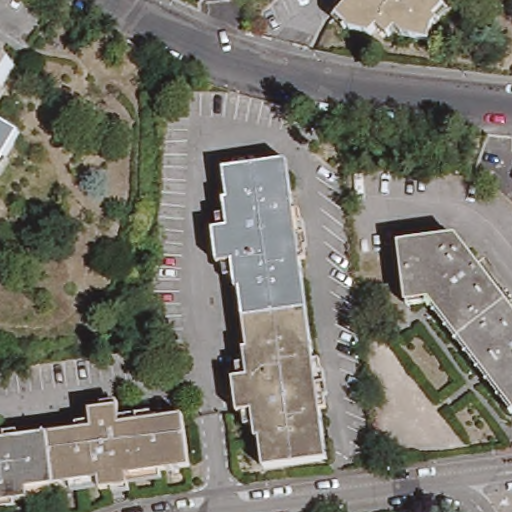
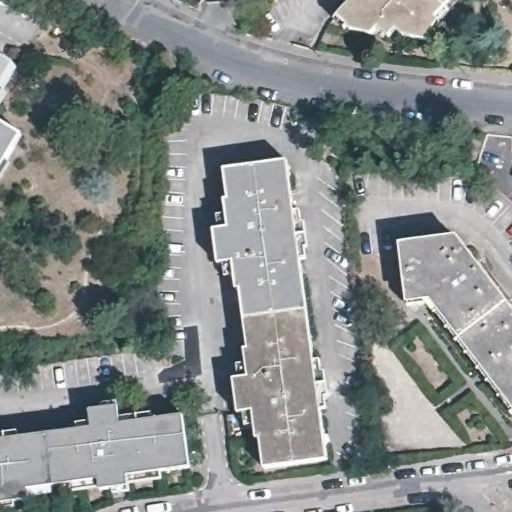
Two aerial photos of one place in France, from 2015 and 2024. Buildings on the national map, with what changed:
unchanged [(409,40),(405,38),(398,30),(393,35),(391,36),(390,36),(380,25),(372,32),(351,27),(338,13),(350,0),(460,0),(441,20),(434,27),(432,43),(409,40)]
unchanged [(26,61),(0,106),(0,46),(26,61)]
unchanged [(145,60),(136,74),(119,61),(129,48),(145,60)]
unchanged [(31,129),(0,180),(0,111),(31,129)]
unchanged [(252,378),(249,349),(252,348),(244,289),(241,290),(237,260),(221,261),(217,227),(224,226),(232,225),(228,197),(232,197),(228,167),(284,160),(289,190),(295,189),(302,237),(303,244),(308,281),(316,343),(321,379),(322,386),(328,431),(318,433),(320,444),(323,444),(325,461),(268,468),(264,440),(261,441),(257,413),(250,414),(242,415),(238,380),(252,378)]
unchanged [(440,294),(418,298),(410,244),(456,237),(469,254),(475,250),(512,298),(512,390),(440,294)]
unchanged [(93,425),(90,406),(119,403),(122,420),(184,412),(190,464),(126,472),(128,483),(100,486),(98,476),(28,486),(29,496),(0,500),(0,437),(93,425)]

